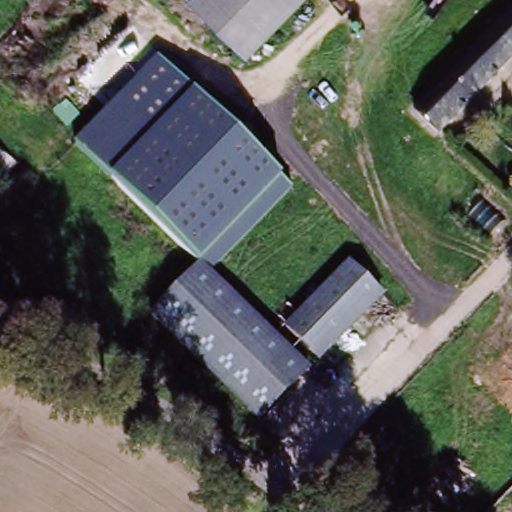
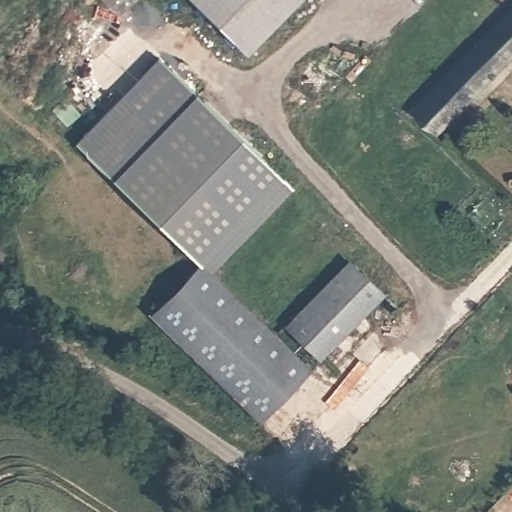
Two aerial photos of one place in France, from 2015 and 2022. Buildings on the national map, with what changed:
unchanged [(243,59),(185,0),(301,0),(243,59)]
unchanged [(421,105),(415,97),(432,79),(440,87),(512,13),(512,57),(435,137),(412,115),(421,105)]
unchanged [(282,178),(198,264),(76,145),(157,61),(282,178)]
unchanged [(200,264),(307,374),(257,422),(150,313),(200,264)]
unchanged [(346,265),(383,299),(322,359),(287,326),(346,265)]
unchanged [(512,375),(512,380),(510,377),(512,375)]

